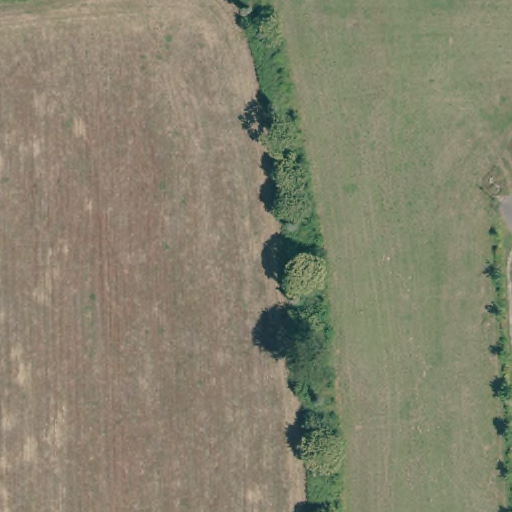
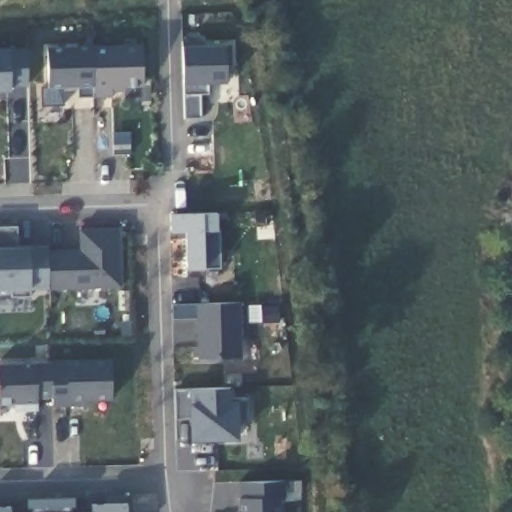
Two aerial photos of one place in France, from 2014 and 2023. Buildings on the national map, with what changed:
new [(226,45),(235,44),(235,64),(226,64),(227,82),(207,82),(207,95),(199,95),(200,119),(185,120),(183,84),(182,46),(226,45)]
new [(91,47),(142,47),(141,87),(123,87),(122,91),(111,91),(111,97),(92,97),(79,98),(78,87),(47,88),(46,47),(91,47)]
new [(7,49),(26,49),(26,88),(9,90),(0,90),(0,49),(7,49)]
new [(203,212),(217,212),(220,269),(204,270),(185,270),(184,232),(170,233),(170,213),(203,212)]
new [(17,227),(17,246),(28,246),(47,246),(48,251),(79,251),(79,229),(120,229),(120,287),(48,288),(30,289),(31,297),(12,298),(12,291),(0,291),(0,228),(17,227)]
new [(197,304),(240,303),(240,358),(198,360),(197,319),(173,318),(172,305),(197,304)]
new [(37,363),(66,362),(111,361),(112,400),(87,401),(86,407),(52,408),(52,400),(37,400),(37,412),(14,412),(14,403),(0,403),(0,364),(37,363)]
new [(189,390),(231,387),(231,400),(236,399),(247,398),(249,422),(238,423),(239,441),(192,442),(190,419),(175,419),(173,390),(189,390)]
new [(278,481),(279,512),(239,512),(238,482),(278,481)]
new [(96,506),(110,505),(110,497),(131,497),(131,512),(96,512),(96,506)]
new [(43,508),(32,508),(32,500),(80,498),(80,507),(68,507),(68,512),(43,512),(43,508)]
new [(1,501),(1,508),(15,507),(15,512),(0,512),(0,501),(1,501)]

